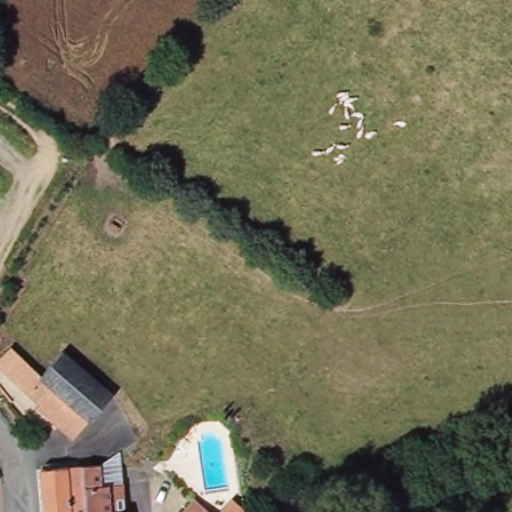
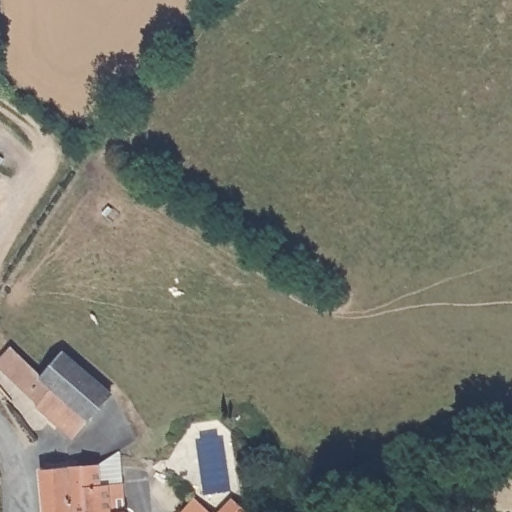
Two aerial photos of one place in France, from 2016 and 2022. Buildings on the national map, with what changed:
unchanged [(9,354),(16,348),(46,377),(68,352),(114,394),(78,439),(36,406),(40,404),(0,366),(0,363),(9,354)]
unchanged [(85,507),(81,466),(97,464),(100,484),(121,482),(125,512),(86,512),(85,507)]
unchanged [(39,471),(81,466),(85,507),(86,512),(44,512),(39,471)]
unchanged [(192,499),(207,512),(181,512),(192,499)]
unchanged [(247,512),(219,512),(229,499),(247,512)]

